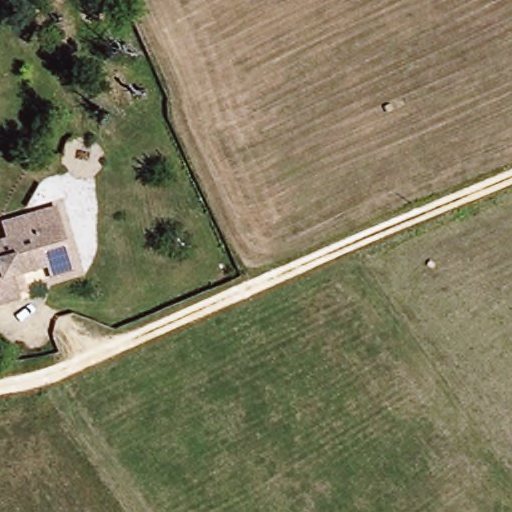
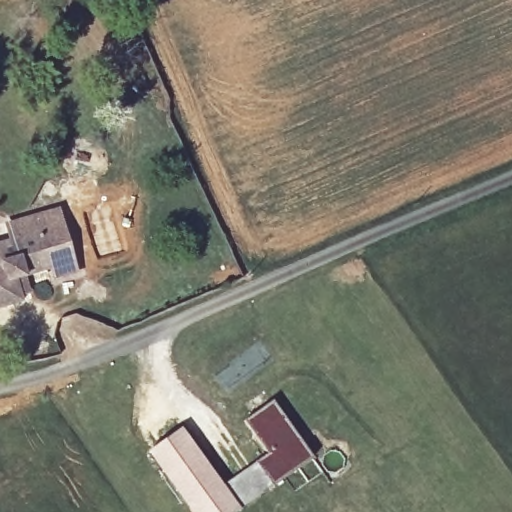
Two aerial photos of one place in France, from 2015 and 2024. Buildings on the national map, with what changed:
unchanged [(4,222),(58,206),(78,271),(55,276),(46,237),(9,245),(4,222)]
unchanged [(55,276),(16,286),(21,310),(0,314),(0,247),(9,245),(46,237),(55,276)]
new [(190,512),(148,451),(181,428),(223,485),(268,453),(245,420),(272,402),(312,460),(275,485),(240,510),(237,512),(190,512)]

